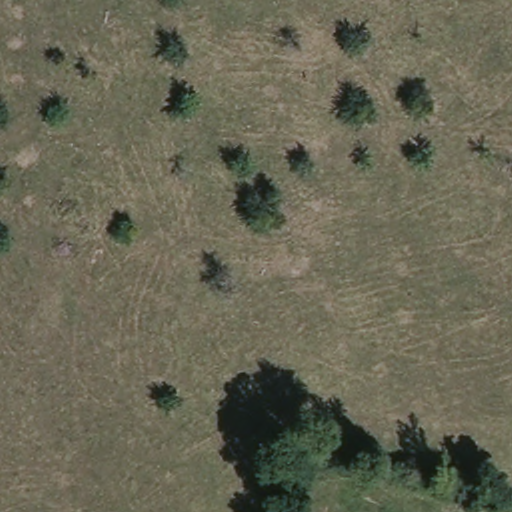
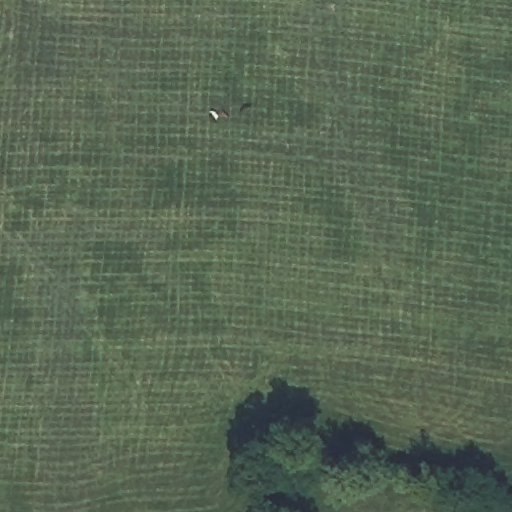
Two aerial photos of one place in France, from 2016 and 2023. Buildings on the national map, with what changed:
[]

